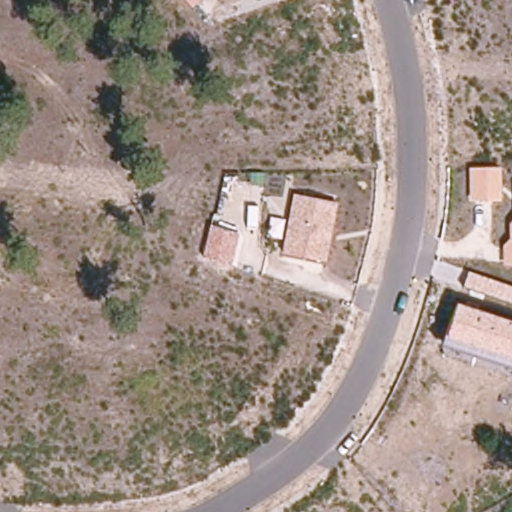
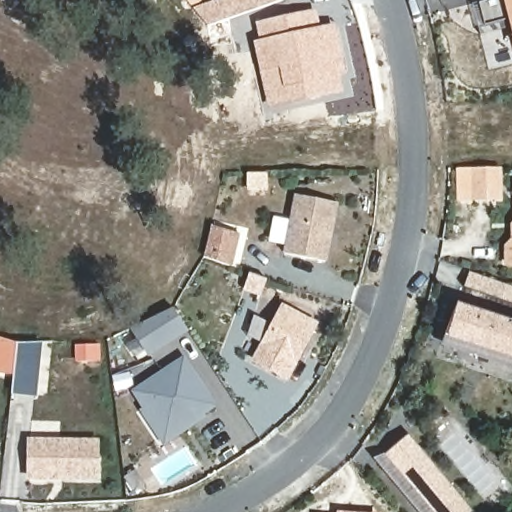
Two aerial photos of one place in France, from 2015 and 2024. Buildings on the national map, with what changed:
new [(216,0),(284,0),(199,29),(193,8),(216,0)]
new [(512,22),(489,28),(480,0),(512,0),(512,22)]
new [(306,14),(309,33),(337,27),(345,70),(320,73),(323,93),(294,97),(287,61),(266,64),(260,23),(306,14)]
unchanged [(502,201),(470,200),(471,166),(502,167),(502,201)]
unchanged [(326,262),(281,253),(294,192),(338,201),(326,262)]
unchanged [(502,245),(507,241),(509,223),(512,221),(512,265),(502,265),(502,245)]
unchanged [(232,268),(202,257),(209,225),(241,235),(232,268)]
unchanged [(470,269),(512,285),(512,304),(463,286),(470,269)]
unchanged [(458,303),(512,323),(512,366),(445,344),(458,303)]
new [(261,344),(283,304),(319,324),(297,364),(261,344)]
new [(178,307),(194,331),(153,352),(140,326),(178,307)]
new [(14,394),(19,343),(43,343),(38,396),(14,394)]
new [(139,388),(188,356),(219,403),(207,411),(209,413),(169,440),(159,426),(162,424),(139,388)]
new [(409,435),(475,511),(473,512),(435,512),(386,454),(409,435)]
new [(29,479),(29,438),(100,438),(99,480),(29,479)]
new [(355,512),(337,512),(337,511),(355,512)]

